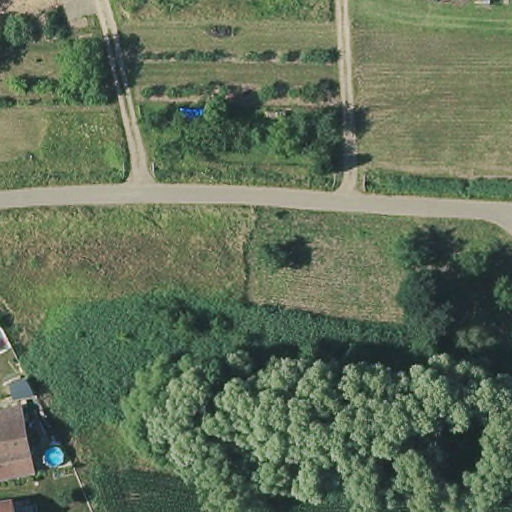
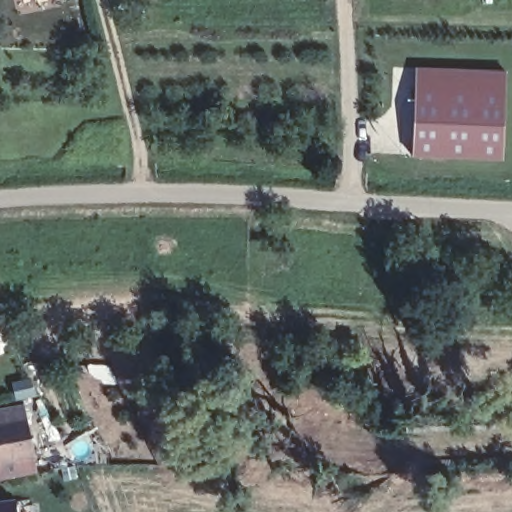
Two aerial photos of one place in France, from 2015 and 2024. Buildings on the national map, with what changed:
new [(504,160),(412,156),(415,67),(506,70),(504,160)]
unchanged [(29,436),(32,455),(34,470),(0,477),(0,408),(23,403),(29,436)]
unchanged [(12,512),(0,512),(0,502),(11,501),(12,512)]

